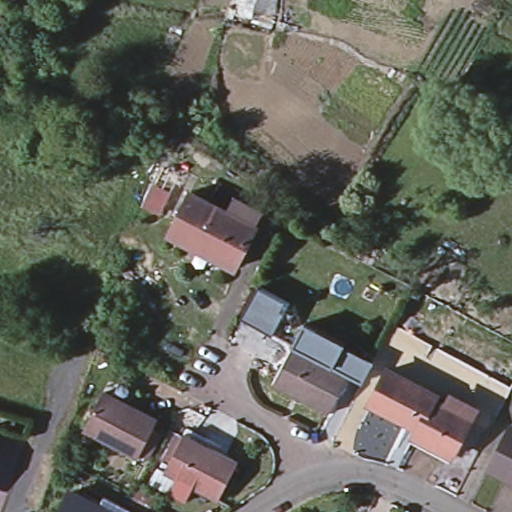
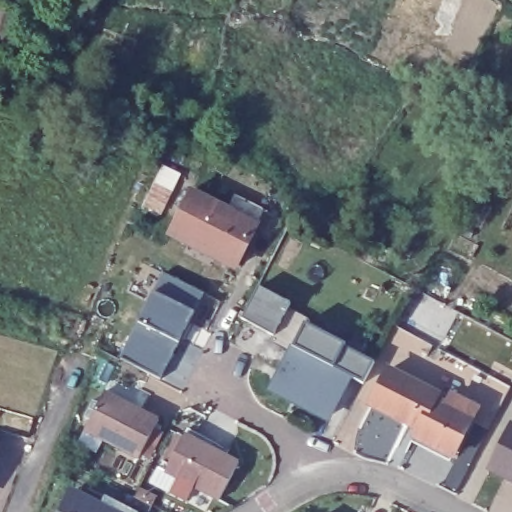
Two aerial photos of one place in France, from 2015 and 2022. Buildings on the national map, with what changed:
unchanged [(171,233),(192,191),(257,225),(235,267),(214,256),(190,243),(171,233)]
new [(163,269),(203,289),(160,374),(120,354),(163,269)]
new [(258,282),(290,299),(274,331),(242,315),(258,282)]
unchanged [(300,336),(332,353),(326,364),(349,376),(330,413),(275,384),(294,347),(300,336)]
unchanged [(412,438),(417,427),(408,422),(407,424),(370,404),(387,371),(435,396),(433,402),(445,408),(450,398),(475,411),(470,421),(450,459),(412,438)]
unchanged [(105,387),(159,416),(140,453),(85,424),(105,387)]
unchanged [(185,428),(188,422),(214,435),(210,441),(239,456),(220,494),(194,481),(187,494),(159,479),(185,428)]
unchanged [(510,432),(512,433),(512,485),(490,473),(510,432)]
unchanged [(99,507),(105,497),(133,512),(60,512),(70,492),(99,507)]

